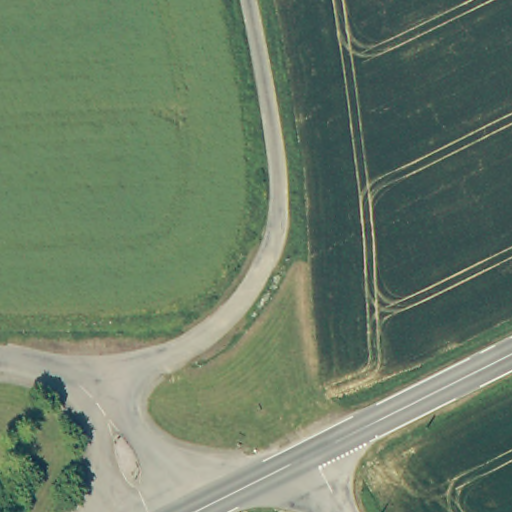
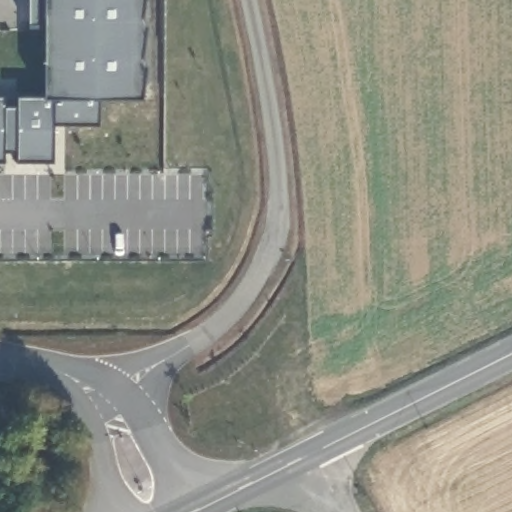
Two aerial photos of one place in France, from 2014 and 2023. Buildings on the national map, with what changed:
new [(141,21),(146,29),(141,61),(147,69),(142,99),(97,99),(99,125),(52,126),(53,161),(18,161),(17,155),(2,155),(2,161),(0,161),(0,99),(5,99),(5,106),(20,107),(21,96),(46,98),(45,25),(30,24),(30,0),(145,0),(141,21)]

